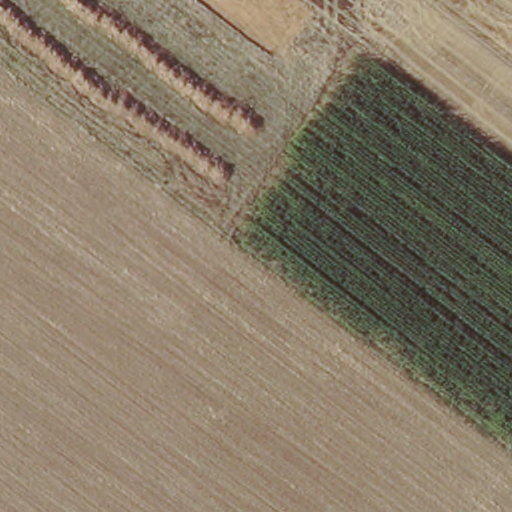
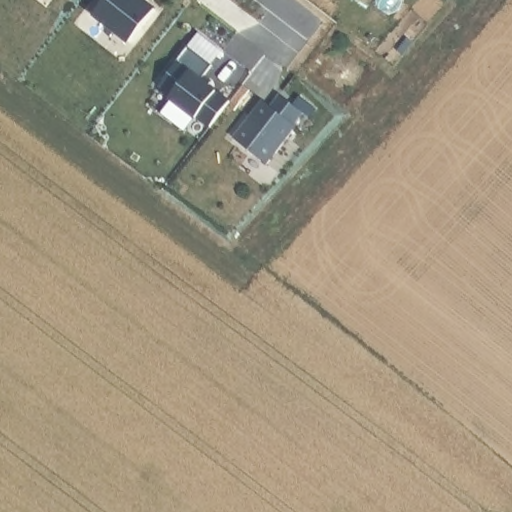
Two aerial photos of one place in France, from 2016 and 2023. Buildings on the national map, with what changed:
new [(154,10),(129,42),(89,11),(97,0),(142,0),(154,10)]
new [(216,66),(207,78),(235,99),(212,125),(177,100),(181,95),(162,81),(191,45),(216,66)]
new [(262,97),(271,103),(280,92),(303,110),(294,122),(296,123),(267,161),(234,135),(262,97)]

